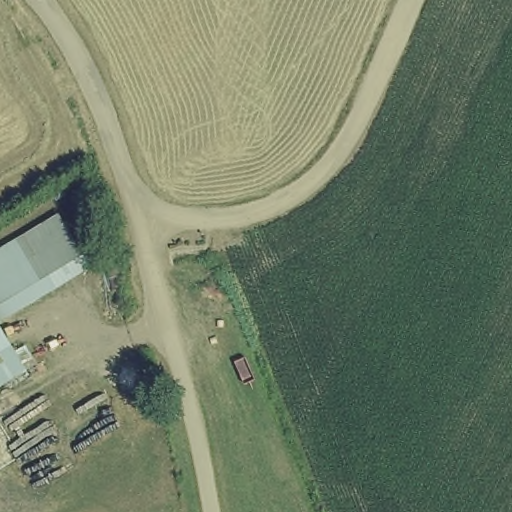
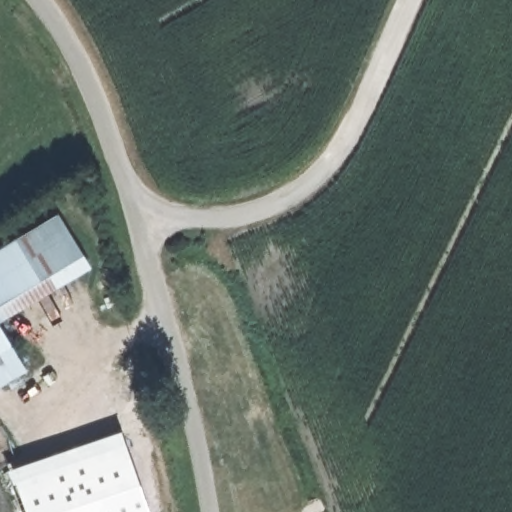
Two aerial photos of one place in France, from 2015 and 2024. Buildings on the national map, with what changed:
unchanged [(0,324),(0,244),(51,214),(87,270),(0,324)]
unchanged [(23,373),(0,387),(0,327),(23,373)]
demolished [(28,481),(6,442),(103,386),(125,424),(28,481)]
new [(121,430),(150,512),(24,512),(8,469),(121,430)]

